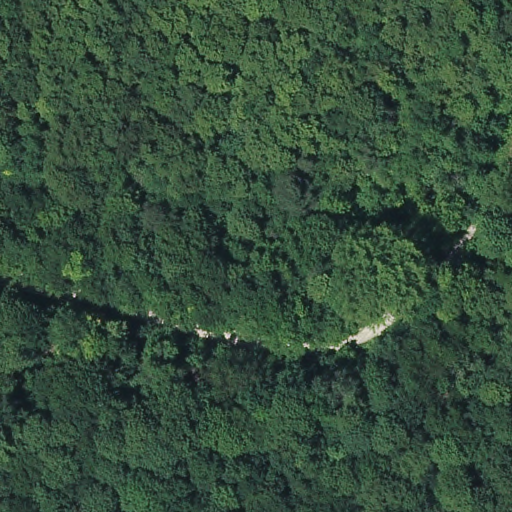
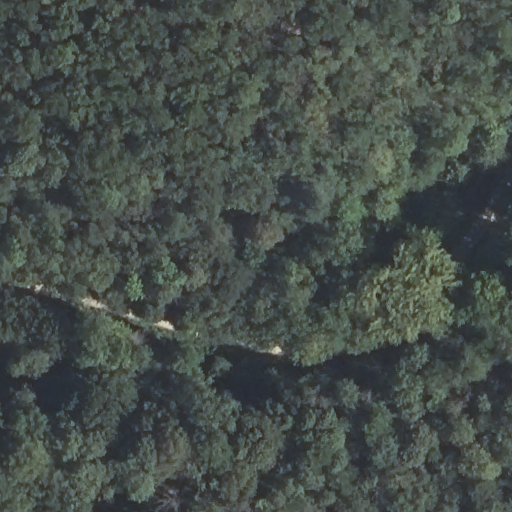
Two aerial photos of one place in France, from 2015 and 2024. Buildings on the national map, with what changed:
unchanged [(241,209),(213,211),(211,188),(241,187),(241,209)]
unchanged [(303,231),(303,244),(292,246),(294,231),(303,231)]

